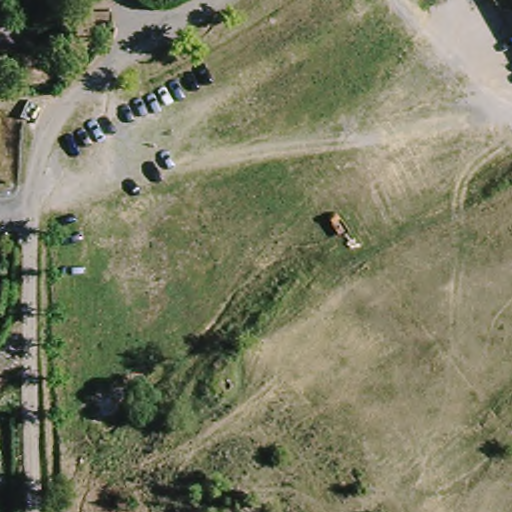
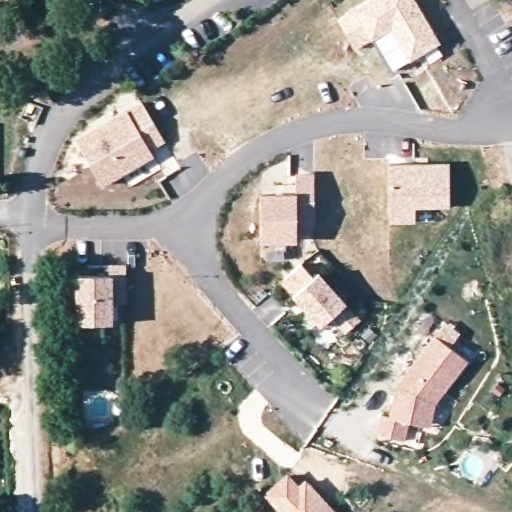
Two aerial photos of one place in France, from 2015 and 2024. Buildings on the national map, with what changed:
unchanged [(7,0),(37,0),(39,6),(11,13),(7,0)]
new [(354,9),(369,0),(415,0),(441,44),(410,62),(409,60),(391,71),(372,40),(356,50),(337,19),(354,9)]
new [(165,141),(149,150),(154,157),(103,187),(75,140),(126,111),(142,102),(165,141)]
new [(389,165),(449,165),(450,207),(434,207),(434,221),(390,221),(389,165)]
new [(266,263),(265,243),(261,242),(260,194),(297,194),(296,174),(315,174),(315,229),(297,229),(297,243),(285,242),(287,261),(266,263)]
new [(76,275),(109,276),(109,264),(126,265),(127,304),(113,304),(114,325),(77,325),(76,275)]
new [(345,334),(332,316),(320,327),(293,295),(281,281),(302,264),(315,277),(320,273),(347,304),(362,321),(345,334)]
new [(389,417),(395,385),(434,335),(446,321),(461,334),(449,347),(468,361),(444,392),(446,393),(436,406),(431,428),(410,422),(405,442),(376,436),(380,415),(389,417)]
new [(298,485),(306,478),(337,512),(281,512),(264,493),(287,472),(298,485)]

